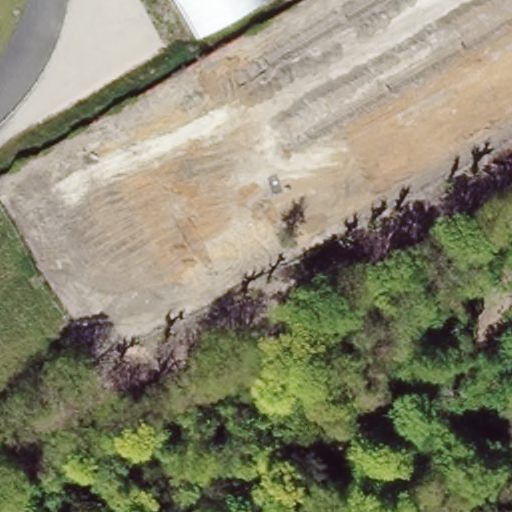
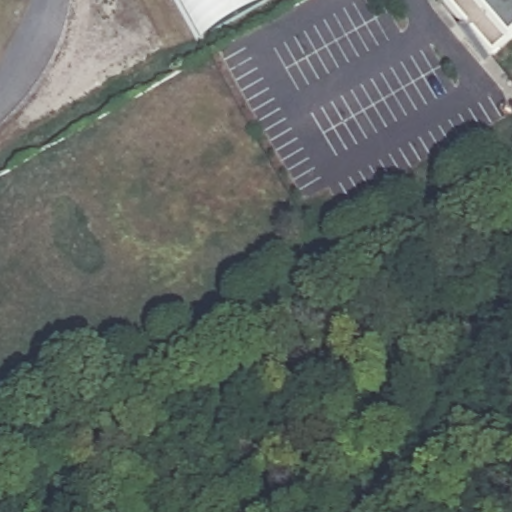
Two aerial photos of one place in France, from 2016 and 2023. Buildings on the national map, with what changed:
unchanged [(182,24),(169,0),(245,0),(187,32),(182,24)]
new [(505,42),(491,55),(444,0),(512,0),(512,36),(505,42)]

